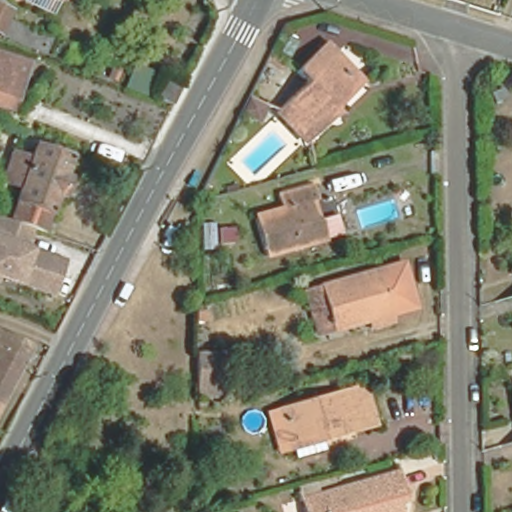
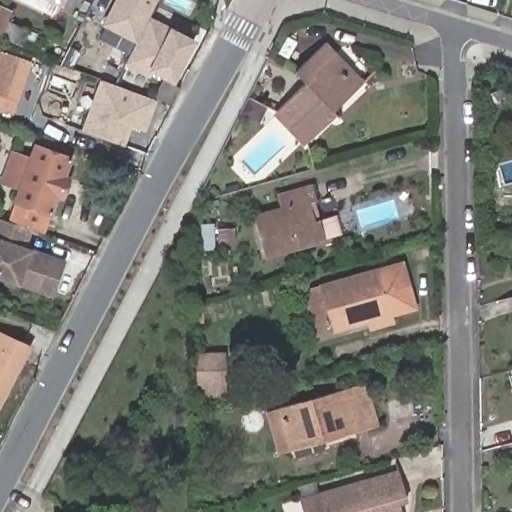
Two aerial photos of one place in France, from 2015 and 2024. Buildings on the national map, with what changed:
new [(117,0),(159,0),(150,17),(139,38),(106,22),(117,0)]
unchanged [(39,53),(18,45),(0,36),(0,9),(5,12),(1,20),(24,31),(45,39),(39,53)]
new [(139,38),(150,17),(196,40),(176,79),(154,68),(151,73),(128,61),(139,38)]
unchanged [(303,144),(273,112),(304,84),(293,73),(321,48),(331,59),(345,74),(357,88),(330,112),(336,119),(334,120),(333,118),(328,123),(303,144)]
unchanged [(12,110),(0,106),(0,55),(13,60),(27,65),(12,110)]
demolished [(115,81),(104,78),(108,66),(119,70),(115,81)]
unchanged [(152,95),(159,78),(180,87),(171,104),(152,95)]
new [(146,131),(131,126),(125,145),(82,130),(99,79),(157,101),(146,131)]
unchanged [(16,227),(6,224),(12,208),(14,203),(19,189),(3,183),(12,155),(29,161),(31,154),(67,167),(61,184),(67,186),(60,205),(55,203),(48,221),(47,221),(41,236),(16,227)]
unchanged [(335,217),(340,237),(323,241),(261,256),(251,217),(278,210),(275,195),(311,187),(314,202),(312,202),(316,220),(318,220),(335,217)]
unchanged [(21,250),(61,266),(49,297),(0,278),(0,224),(27,234),(21,250)]
unchanged [(210,250),(197,250),(196,225),(210,225),(210,250)]
unchanged [(359,333),(357,325),(337,331),(323,335),(306,340),(293,295),(310,290),(370,274),(392,267),(405,311),(382,318),(385,326),(359,333)]
unchanged [(0,410),(0,324),(2,326),(36,341),(0,410)]
unchanged [(196,361),(224,360),(224,388),(197,388),(196,361)]
unchanged [(286,442),(276,406),(341,389),(365,382),(378,425),(354,432),(321,441),(289,450),(286,442)]
unchanged [(296,491),(299,490),(298,488),(314,484),(317,494),(396,471),(394,462),(396,461),(406,499),(397,502),(400,512),(302,512),(298,499),(296,491)]

